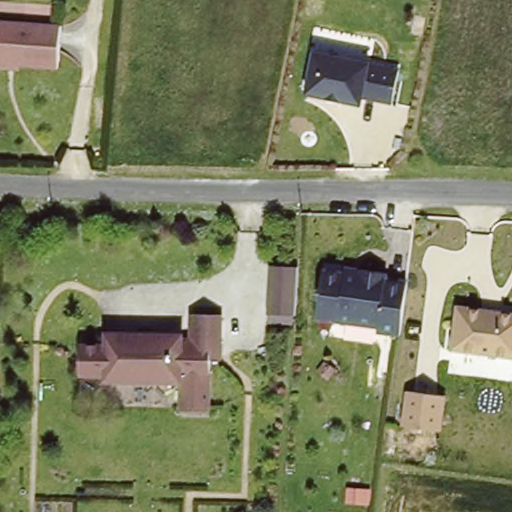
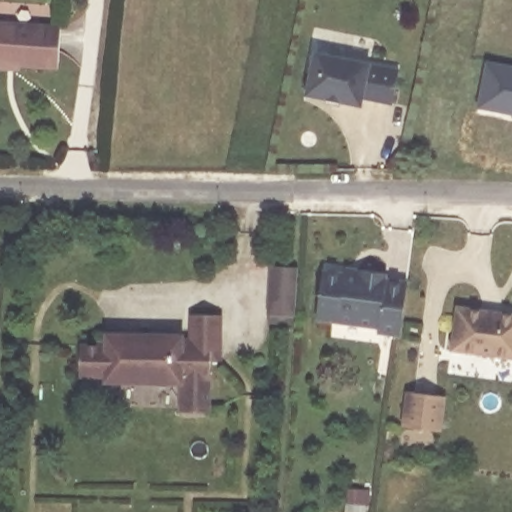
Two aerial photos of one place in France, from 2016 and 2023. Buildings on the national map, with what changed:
unchanged [(0,61),(0,13),(62,25),(60,65),(27,58),(25,67),(11,64),(0,61)]
unchanged [(392,106),(362,100),(361,107),(304,96),(312,52),(369,64),(399,69),(392,106)]
new [(487,61),(512,66),(512,114),(479,107),(487,61)]
unchanged [(293,267),(290,315),(262,313),(266,265),(293,267)]
unchanged [(377,330),(377,325),(317,318),(324,269),(346,271),(347,266),(360,267),(386,271),(386,276),(406,278),(398,332),(377,330)]
unchanged [(512,312),(512,359),(449,351),(455,305),(512,312)]
unchanged [(106,346),(106,334),(182,333),(182,337),(191,337),(191,312),(221,312),(221,357),(211,357),(207,409),(179,410),(179,381),(103,382),(103,377),(77,377),(80,346),(106,346)]
unchanged [(445,396),(441,431),(402,426),(405,391),(445,396)]

